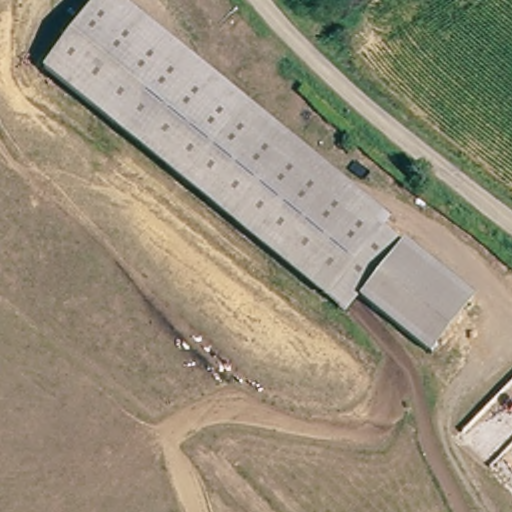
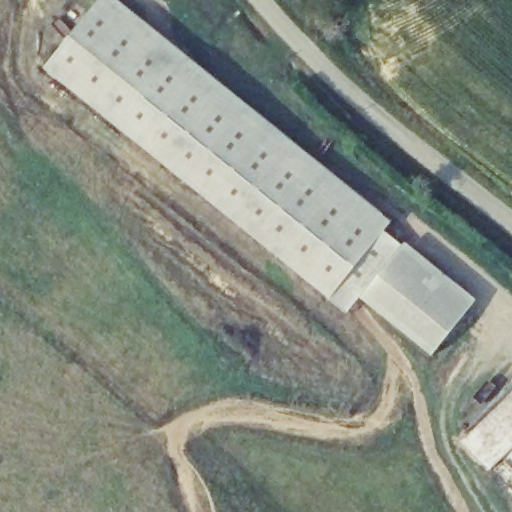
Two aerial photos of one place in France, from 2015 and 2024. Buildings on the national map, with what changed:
unchanged [(471,299),(427,352),(359,296),(347,311),(44,69),(97,0),(106,0),(471,299)]

